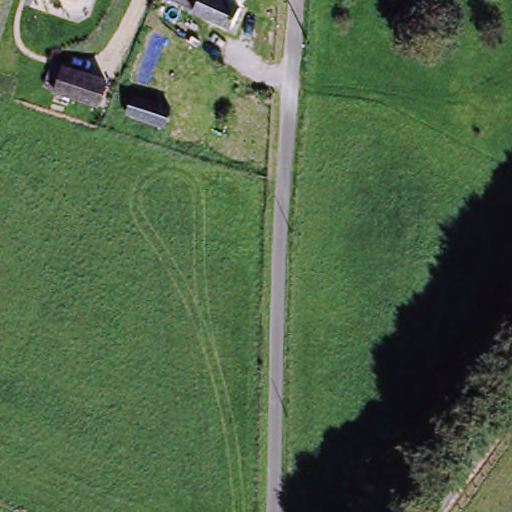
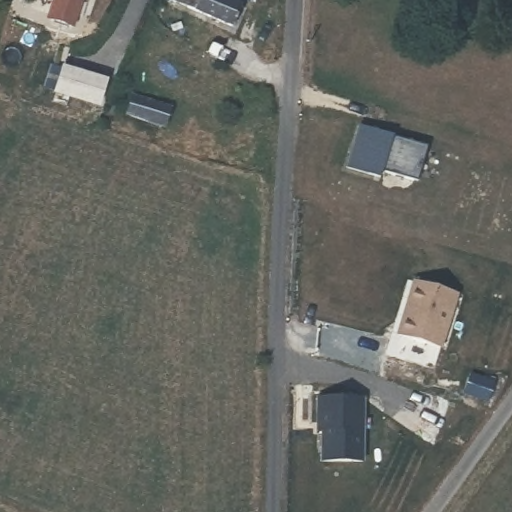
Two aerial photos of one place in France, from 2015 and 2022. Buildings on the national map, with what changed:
unchanged [(80,4),(67,0),(81,0),(80,4)]
unchanged [(235,32),(172,9),(165,6),(167,0),(246,0),(235,32)]
unchanged [(57,66),(108,84),(98,112),(47,94),(57,66)]
unchanged [(135,101),(173,114),(167,134),(128,122),(135,101)]
new [(416,180),(382,170),(380,178),(346,169),(357,126),(393,137),(427,147),(416,180)]
new [(457,293),(442,349),(395,334),(412,276),(457,293)]
new [(363,395),(362,463),(320,460),(320,430),(315,430),(315,394),(363,395)]

